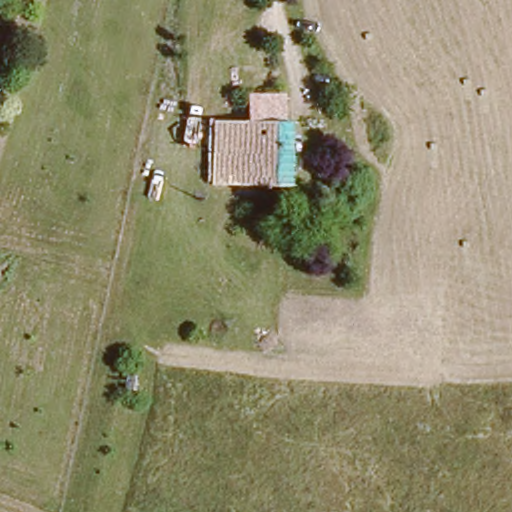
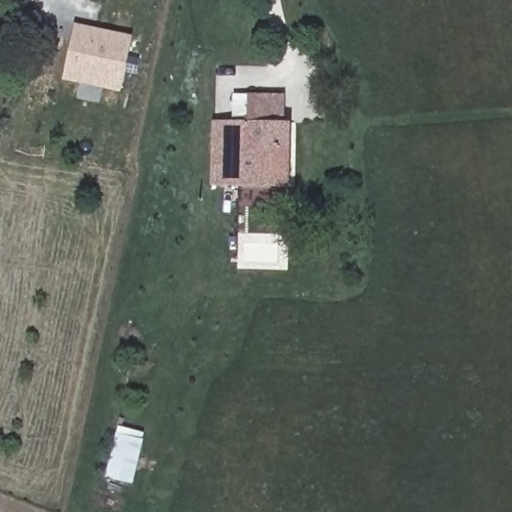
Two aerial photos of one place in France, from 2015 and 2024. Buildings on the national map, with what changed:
new [(121,91),(62,80),(74,22),(132,35),(121,91)]
unchanged [(277,95),(277,121),(283,122),(280,184),(208,182),(210,143),(205,143),(205,135),(212,133),(212,120),(229,121),(231,94),(277,95)]

